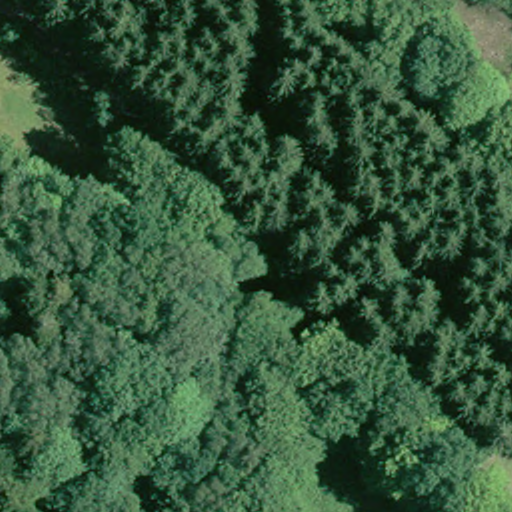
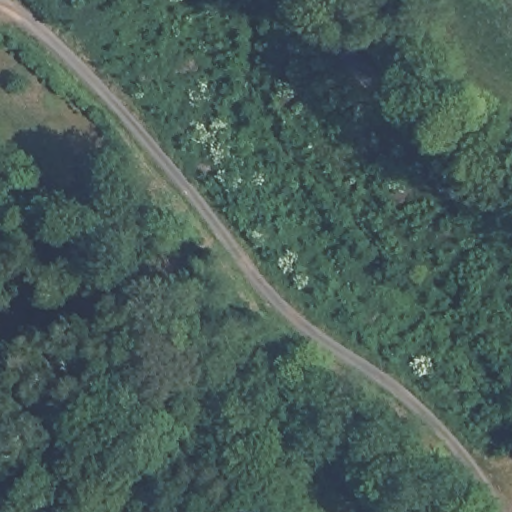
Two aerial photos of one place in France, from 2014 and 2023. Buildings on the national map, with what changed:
unchanged [(109,189),(157,224),(144,246),(94,211),(109,189)]

